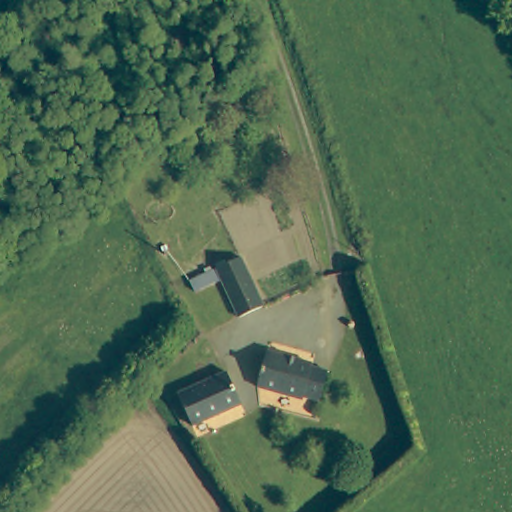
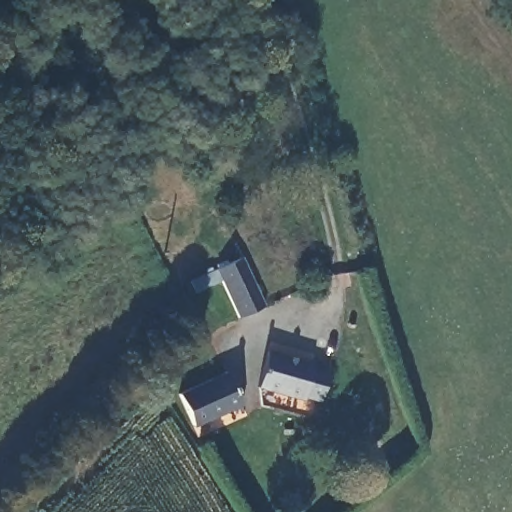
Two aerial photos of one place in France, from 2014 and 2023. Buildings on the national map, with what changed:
unchanged [(265,305),(240,319),(224,286),(199,295),(192,283),(243,257),(265,305)]
unchanged [(313,405),(270,393),(273,377),(278,358),(323,370),(313,405)]
unchanged [(240,404),(196,421),(185,393),(229,376),(240,404)]

